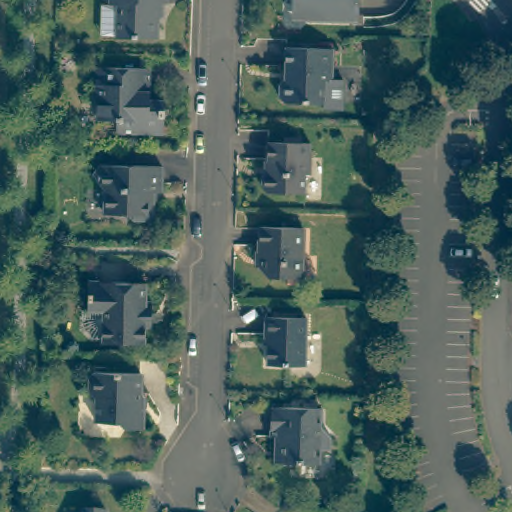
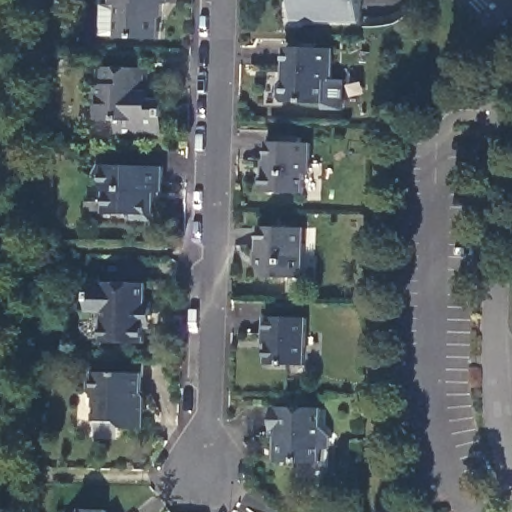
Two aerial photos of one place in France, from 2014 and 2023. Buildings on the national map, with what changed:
unchanged [(105,4),(112,5),(112,0),(171,0),(171,5),(162,5),(162,39),(120,38),(120,35),(105,35),(105,4)]
unchanged [(357,20),(317,19),(317,13),(292,12),(292,0),(358,0),(357,20)]
unchanged [(341,104),(322,103),(322,98),(283,97),(278,93),(279,79),(284,74),(285,43),(332,44),(331,75),(342,75),(341,104)]
unchanged [(148,64),(147,95),(163,95),(162,130),(114,127),(115,116),(96,115),(96,101),(92,97),(94,62),(148,64)]
unchanged [(266,187),(266,176),(271,172),(272,142),(288,143),(288,138),(306,139),(306,143),(314,144),(313,174),(308,174),(307,193),(270,192),(266,187)]
unchanged [(163,168),(162,193),(152,192),(151,218),(135,217),(131,213),(106,212),(107,189),(95,174),(102,165),(163,168)]
unchanged [(306,228),(304,277),(273,276),(262,266),(264,227),(306,228)]
unchanged [(149,284),(148,303),(153,303),(152,316),(145,316),(144,327),(147,327),(147,344),(105,343),(104,343),(105,311),(90,310),(91,283),(149,284)]
unchanged [(310,319),(308,365),(271,364),(272,335),(268,335),(269,318),(310,319)]
unchanged [(97,372),(144,374),(142,407),(145,407),(144,427),(127,427),(121,421),(98,420),(99,399),(92,392),(92,375),(97,372)]
unchanged [(325,404),(325,422),(335,433),(325,443),(324,458),(286,457),(286,444),(278,444),(278,432),(274,431),(275,402),(325,404)]
unchanged [(107,510),(106,512),(82,512),(82,510),(107,510)]

